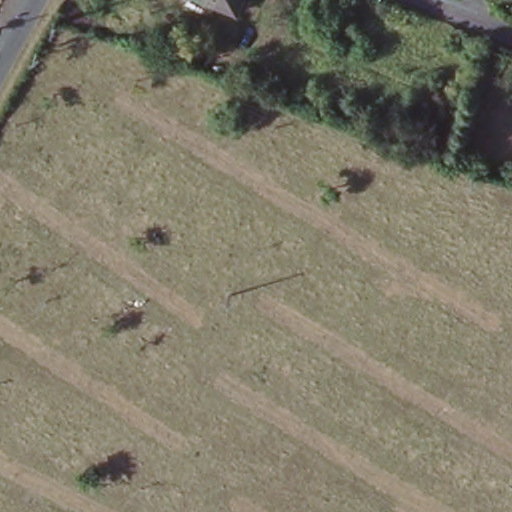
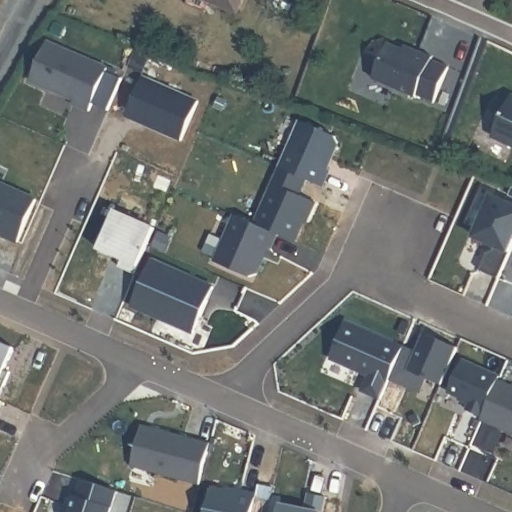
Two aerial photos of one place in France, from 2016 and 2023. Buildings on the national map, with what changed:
unchanged [(232,13),(203,0),(238,0),(232,13)]
new [(450,63),(436,99),(372,77),(388,40),(450,63)]
new [(54,41),(126,76),(109,110),(98,104),(95,110),(35,82),(54,41)]
new [(512,147),(493,139),(512,95),(512,147)]
new [(335,138),(320,186),(305,180),(300,195),(315,201),(307,218),(305,217),(296,242),(272,233),(255,225),(281,169),(277,167),(299,123),(335,138)]
new [(39,199),(22,242),(0,231),(0,182),(39,199)]
new [(497,278),(480,270),(491,247),(472,238),(491,195),(512,204),(512,248),(510,253),(497,278)]
new [(114,209),(154,226),(134,271),(118,264),(121,257),(98,247),(114,209)]
new [(255,279),(213,261),(232,214),(255,225),(272,233),(255,279)]
new [(151,259),(212,287),(192,332),(132,305),(151,259)]
new [(403,343),(382,397),(357,390),(365,371),(332,358),(346,318),(403,343)]
new [(456,347),(441,387),(408,372),(425,333),(456,347)]
new [(14,348),(5,370),(10,373),(0,396),(0,342),(14,348)]
new [(512,434),(481,421),(482,418),(466,411),(468,406),(446,396),(462,359),(512,382),(512,434)]
new [(210,441),(198,484),(129,465),(142,421),(210,441)]
new [(70,512),(81,476),(122,488),(115,512),(70,512)]
new [(257,493),(254,512),(205,512),(212,484),(257,493)]
new [(315,512),(278,512),(280,505),(315,512)]

